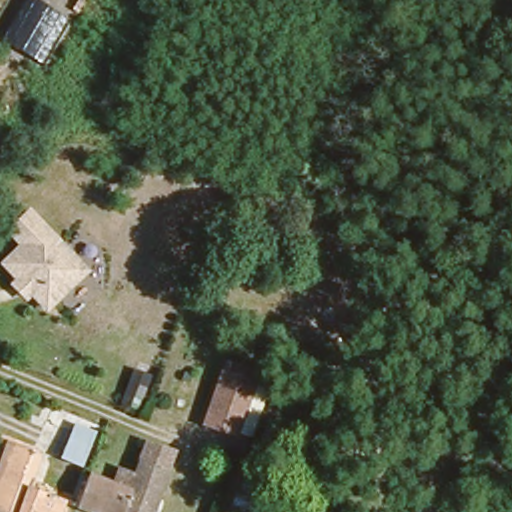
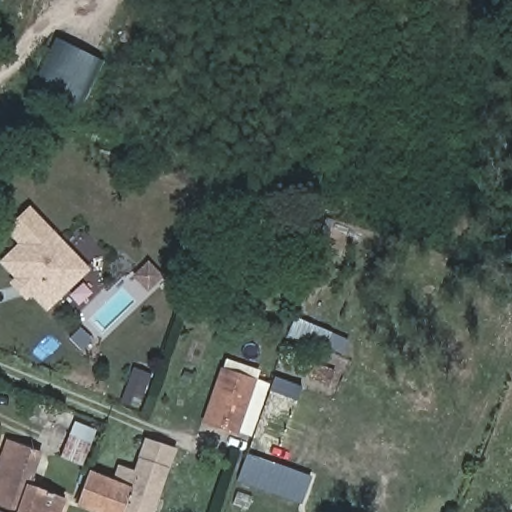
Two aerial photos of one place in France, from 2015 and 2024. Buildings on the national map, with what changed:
new [(55,40),(106,62),(81,111),(30,89),(55,40)]
unchanged [(25,299),(8,280),(12,277),(0,263),(0,256),(15,241),(2,227),(29,205),(90,268),(46,311),(29,295),(25,299)]
unchanged [(258,380),(242,434),(209,424),(225,371),(258,380)]
unchanged [(104,429),(89,466),(60,453),(74,415),(104,429)]
unchanged [(148,431),(177,440),(172,456),(173,456),(155,512),(118,512),(119,508),(84,493),(96,464),(113,471),(119,456),(134,462),(139,446),(144,430),(148,431)]
unchanged [(0,457),(0,456),(7,434),(9,431),(44,445),(42,449),(35,470),(0,457)]
new [(311,480),(300,506),(239,478),(250,453),(311,480)]
unchanged [(37,471),(32,482),(64,494),(57,512),(10,512),(0,509),(0,457),(35,470),(37,471)]
unchanged [(0,512),(0,509),(10,512),(0,512)]

